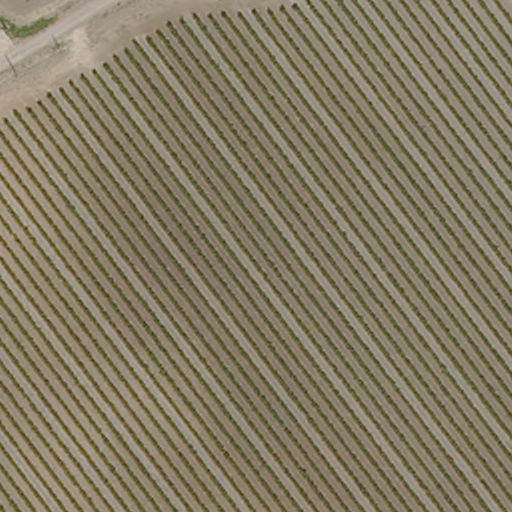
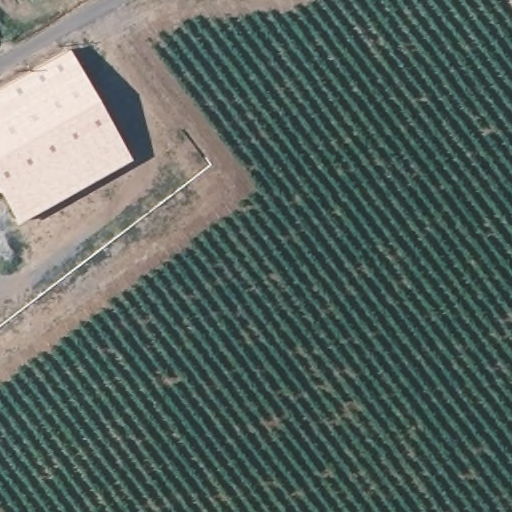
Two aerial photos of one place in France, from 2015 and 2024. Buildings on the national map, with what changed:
new [(81,70),(131,159),(18,224),(0,192),(0,115),(81,70)]

